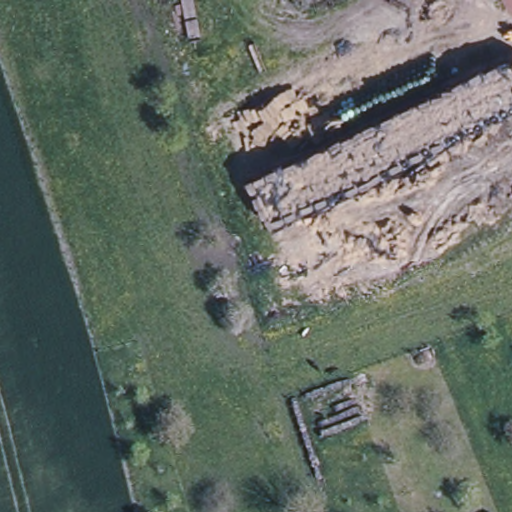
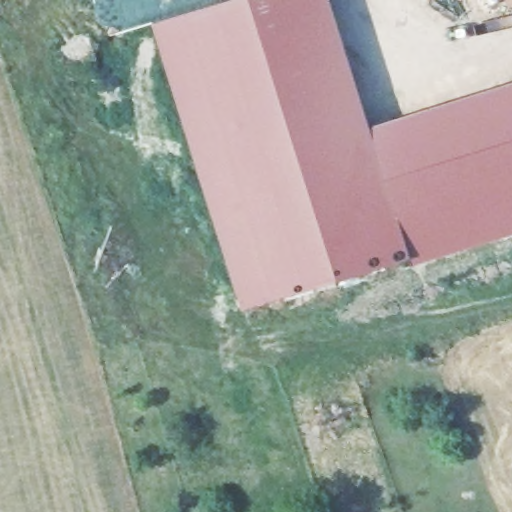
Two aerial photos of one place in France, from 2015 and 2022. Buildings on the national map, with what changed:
new [(151,23),(225,0),(330,0),(411,256),(241,310),(151,23)]
unchanged [(507,0),(512,0),(512,3),(510,4),(507,0)]

